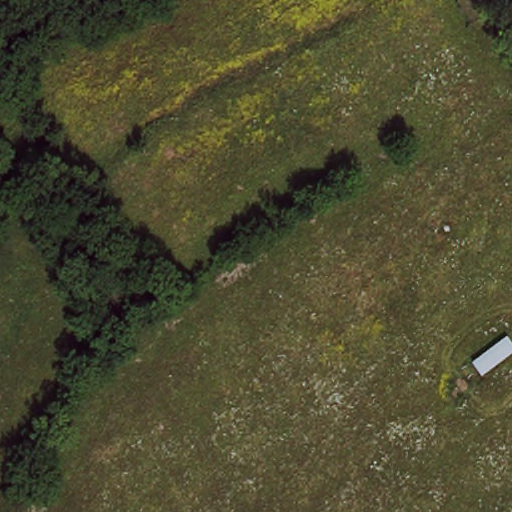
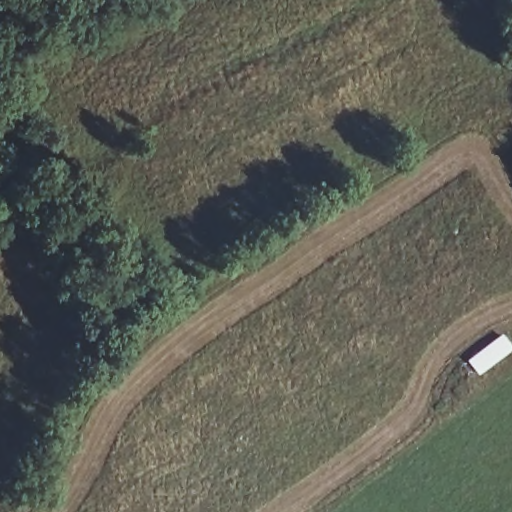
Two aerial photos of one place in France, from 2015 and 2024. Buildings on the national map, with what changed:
unchanged [(512,350),(512,356),(483,379),(471,364),(504,340),(512,350)]

